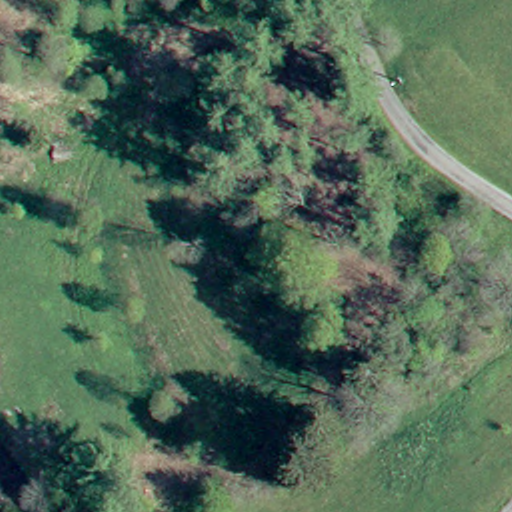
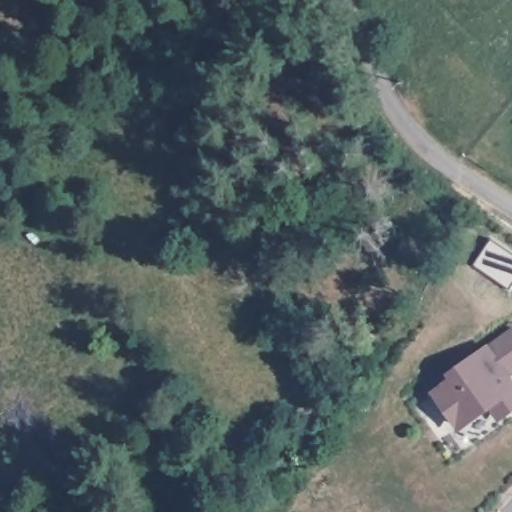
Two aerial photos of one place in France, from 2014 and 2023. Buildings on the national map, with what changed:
new [(512,378),(512,413),(499,423),(490,411),(459,432),(431,392),(449,379),(445,374),(488,344),(512,327),(512,377),(512,378)]

